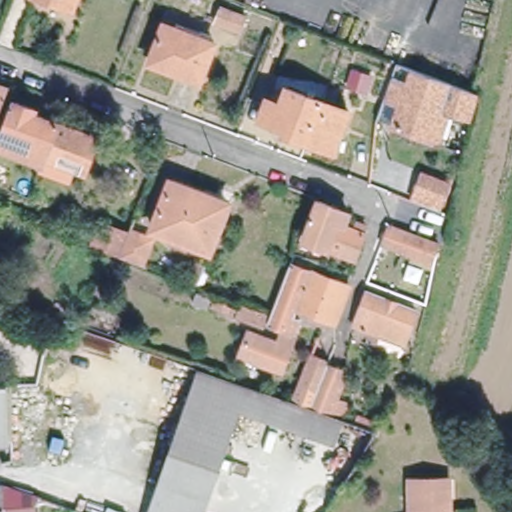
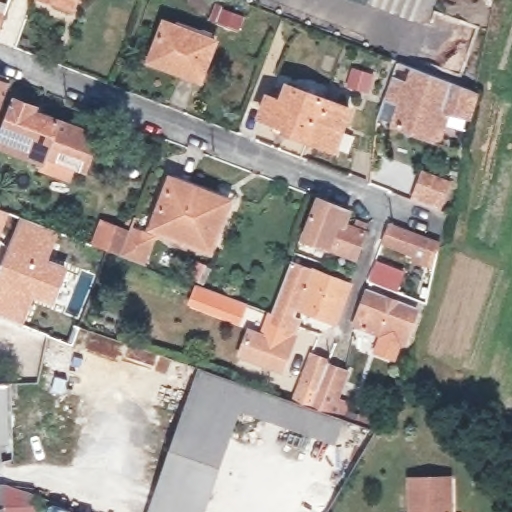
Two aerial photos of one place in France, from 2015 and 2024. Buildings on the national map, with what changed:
unchanged [(48,0),(79,0),(74,11),(48,0)]
unchanged [(237,0),(242,0),(263,9),(253,33),(228,23),(237,0)]
new [(5,38),(0,35),(0,9),(14,14),(5,38)]
unchanged [(151,58),(167,22),(215,43),(200,79),(151,58)]
unchanged [(477,93),(470,119),(449,111),(439,141),(392,125),(401,99),(386,94),(398,61),(477,93)]
unchanged [(0,92),(0,83),(3,84),(0,92)]
unchanged [(337,148),(313,139),(287,129),(289,125),(265,115),(271,97),(285,102),(291,86),(327,100),(352,110),(337,148)]
unchanged [(41,163),(0,146),(0,134),(14,99),(33,106),(31,111),(57,121),(81,132),(73,153),(69,163),(59,159),(53,173),(39,166),(41,163)]
unchanged [(433,177),(459,187),(448,213),(423,203),(433,177)]
unchanged [(215,249),(161,229),(158,228),(177,179),(234,202),(215,249)]
unchanged [(344,222),(351,224),(354,219),(366,224),(353,256),(307,238),(322,199),(349,209),(344,222)]
new [(0,244),(0,209),(10,213),(0,244)]
new [(60,232),(50,259),(69,267),(53,305),(34,298),(23,324),(0,315),(0,266),(20,217),(60,232)]
unchanged [(159,235),(149,263),(127,254),(115,249),(109,247),(118,222),(137,229),(137,228),(159,235)]
unchanged [(441,244),(435,260),(388,241),(394,225),(441,244)]
unchanged [(295,255),(299,245),(308,249),(304,259),(295,255)]
unchanged [(292,264),(346,285),(332,322),(297,308),(295,315),(302,318),(283,367),(256,356),(244,352),(251,332),(264,336),(277,340),(282,327),(269,322),(273,313),(292,264)]
unchanged [(359,323),(373,290),(420,309),(407,342),(359,323)]
unchanged [(287,396),(305,349),(324,357),(323,359),(339,366),(329,393),(344,399),(338,414),(306,403),(287,396)]
unchanged [(334,443),(236,408),(197,512),(146,512),(200,364),(216,371),(239,379),(287,396),(306,403),(338,414),(344,417),(334,443)]
unchanged [(0,389),(3,389),(7,389),(7,444),(3,444),(0,444),(0,389)]
unchanged [(410,474),(452,473),(453,512),(411,512),(410,474)]
unchanged [(2,512),(0,512),(0,480),(1,481),(2,506),(2,512)]
unchanged [(34,504),(35,512),(2,512),(2,506),(34,504)]

